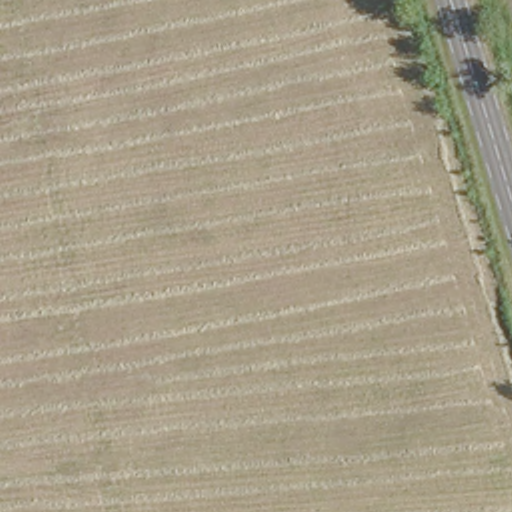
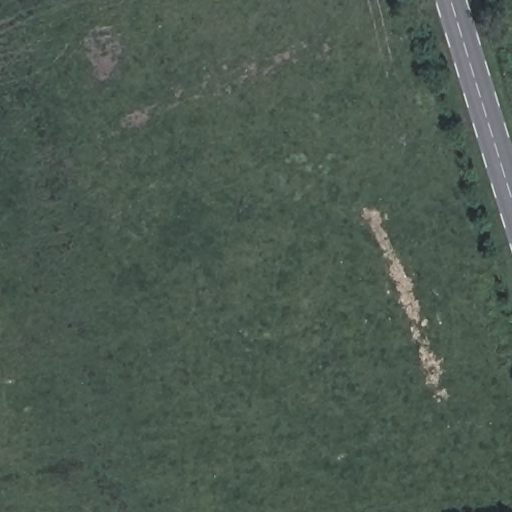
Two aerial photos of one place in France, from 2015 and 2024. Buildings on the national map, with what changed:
[]

